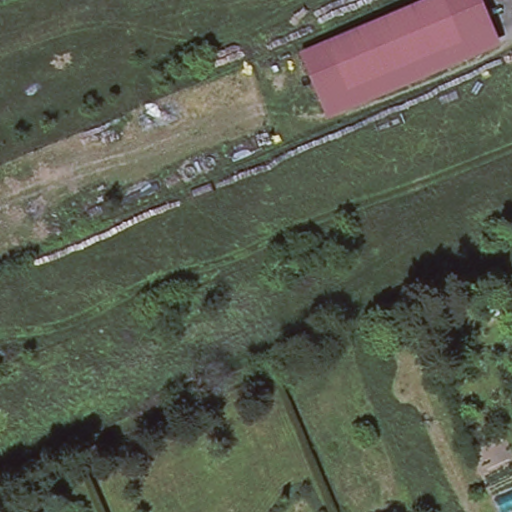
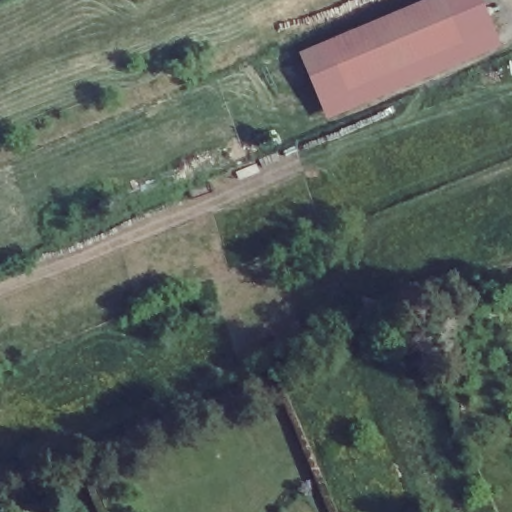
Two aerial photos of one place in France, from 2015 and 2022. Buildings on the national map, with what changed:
unchanged [(484,0),(503,47),(329,120),(301,52),(425,0),(484,0)]

